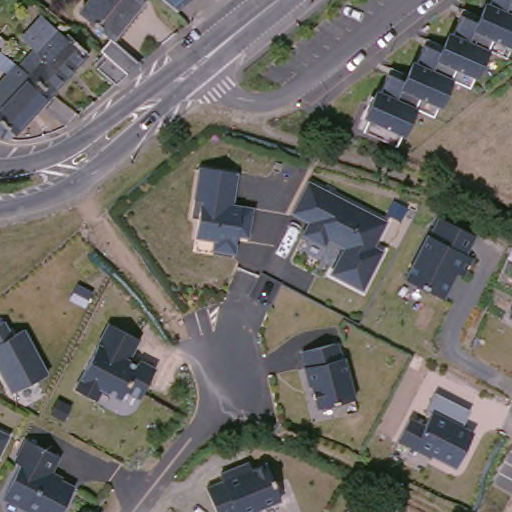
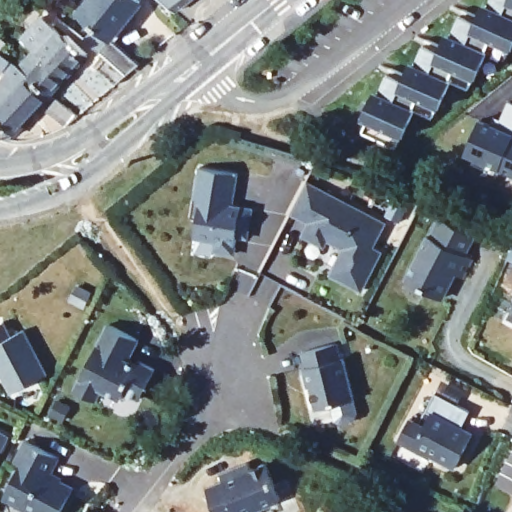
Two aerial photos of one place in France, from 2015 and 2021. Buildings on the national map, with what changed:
unchanged [(110,38),(79,12),(89,0),(143,0),(110,38)]
unchanged [(178,10),(166,0),(190,0),(178,10)]
unchanged [(413,69),(429,31),(450,40),(466,1),(487,10),(491,0),(512,0),(512,47),(511,49),(491,40),(474,77),(454,69),(438,107),(417,97),(400,138),(366,124),(393,60),(413,69)]
unchanged [(48,95),(32,79),(31,78),(21,69),(34,54),(21,42),(40,20),(63,42),(68,39),(88,59),(53,99),(48,95)]
unchanged [(98,68),(107,57),(101,51),(110,38),(140,63),(128,73),(116,84),(98,68)]
unchanged [(1,52),(0,51),(0,39),(8,45),(1,52)]
unchanged [(0,87),(3,85),(1,82),(6,78),(0,73),(0,54),(6,59),(23,72),(31,78),(32,79),(48,95),(53,99),(10,145),(0,136),(0,87)]
new [(512,102),(512,172),(466,153),(478,117),(498,125),(508,101),(512,102)]
unchanged [(66,129),(48,114),(57,102),(59,105),(79,120),(66,129)]
unchanged [(248,250),(191,241),(198,207),(191,206),(196,172),(238,179),(233,209),(253,212),(248,250)]
unchanged [(362,291),(331,275),(344,249),(327,239),(323,246),(301,234),(306,221),(293,214),(309,181),(387,223),(374,247),(383,251),(362,291)]
unchanged [(442,302),(402,282),(436,219),(476,240),(442,302)]
unchanged [(503,324),(512,307),(512,328),(503,324)]
unchanged [(0,373),(0,326),(13,320),(47,382),(14,401),(0,373)]
unchanged [(137,399),(123,392),(118,399),(101,393),(94,403),(74,392),(104,328),(138,342),(129,360),(151,372),(137,399)]
unchanged [(303,388),(300,389),(296,371),(298,370),(295,355),(328,347),(332,362),(336,362),(345,403),(308,412),(303,388)]
unchanged [(453,473),(396,451),(411,413),(423,419),(431,400),(466,415),(459,432),(469,436),(453,473)]
unchanged [(0,435),(6,438),(0,451),(0,435)]
unchanged [(0,493),(14,467),(9,464),(21,443),(52,460),(42,478),(66,492),(56,512),(19,512),(0,501),(0,493)]
unchanged [(210,512),(203,490),(266,467),(277,500),(254,512),(210,512)]

